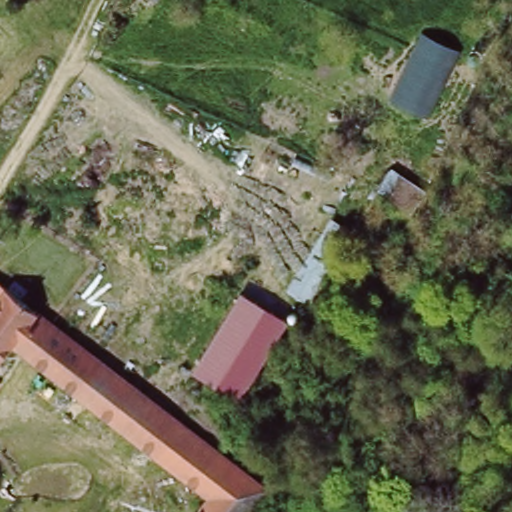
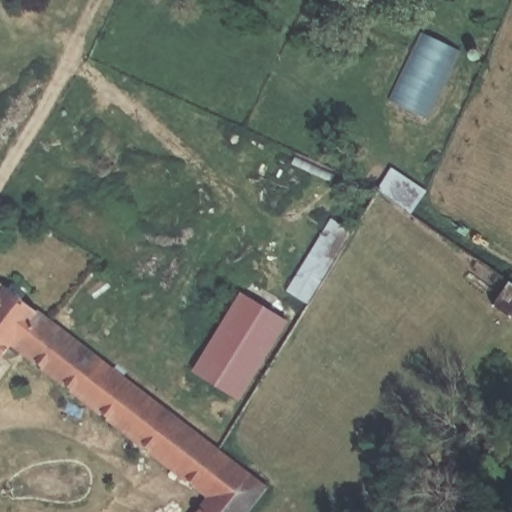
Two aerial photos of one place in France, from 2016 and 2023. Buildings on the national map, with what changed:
unchanged [(459,49),(427,115),(390,98),(421,30),(459,49)]
unchanged [(354,232),(310,304),(285,289),(330,219),(354,232)]
unchanged [(0,279),(5,283),(0,289),(0,279)]
unchanged [(512,285),(512,322),(490,306),(507,281),(512,285)]
unchanged [(265,489),(248,512),(193,512),(208,492),(10,345),(0,358),(0,289),(5,283),(265,489)]
unchanged [(288,319),(240,399),(190,370),(240,291),(288,319)]

